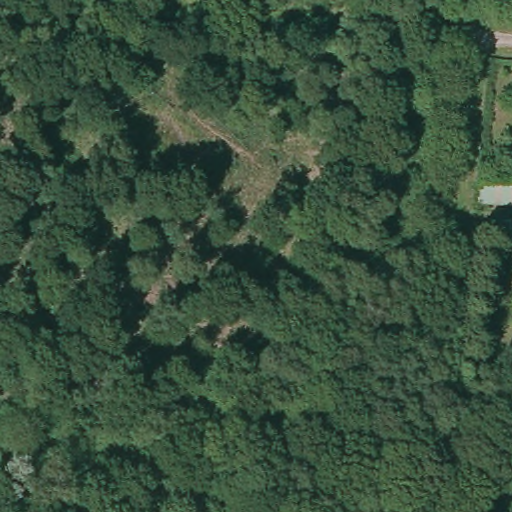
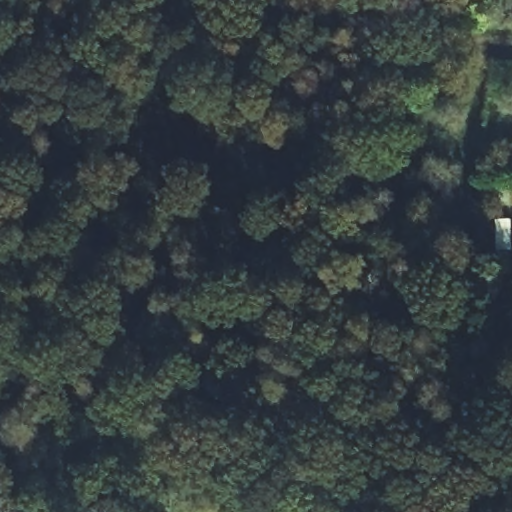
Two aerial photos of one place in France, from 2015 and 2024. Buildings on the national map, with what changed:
unchanged [(511,187),(512,187),(512,195),(511,195),(511,187)]

